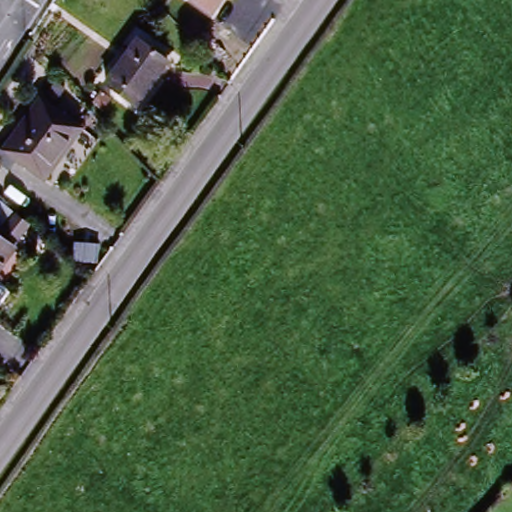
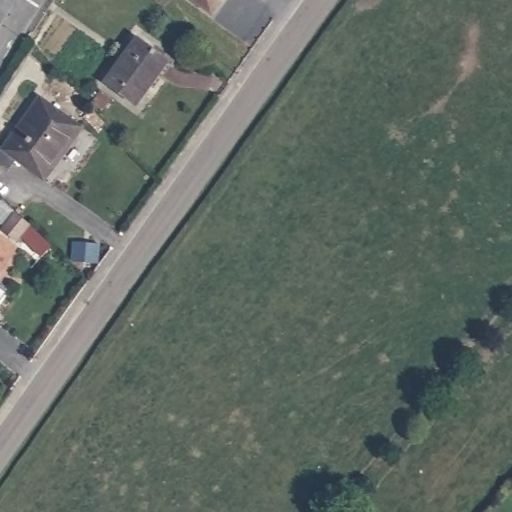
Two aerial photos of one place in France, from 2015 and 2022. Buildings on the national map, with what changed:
unchanged [(212,13),(194,0),(221,0),(212,13)]
unchanged [(169,62),(135,106),(105,84),(139,40),(169,62)]
unchanged [(87,128),(46,178),(20,156),(11,167),(0,158),(0,140),(9,146),(49,96),(87,128)]
unchanged [(20,218),(30,229),(15,243),(5,233),(20,218)]
unchanged [(0,239),(17,252),(0,273),(0,239)]

